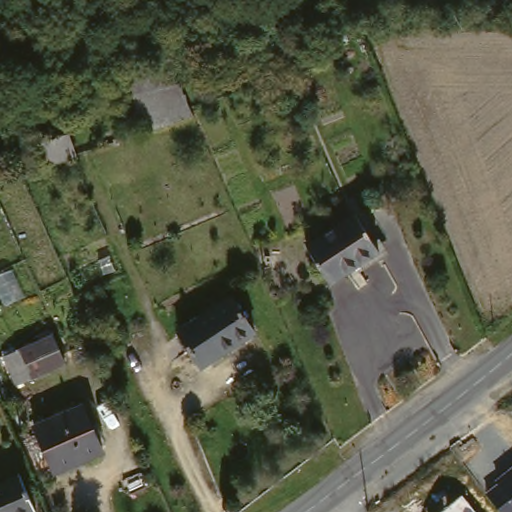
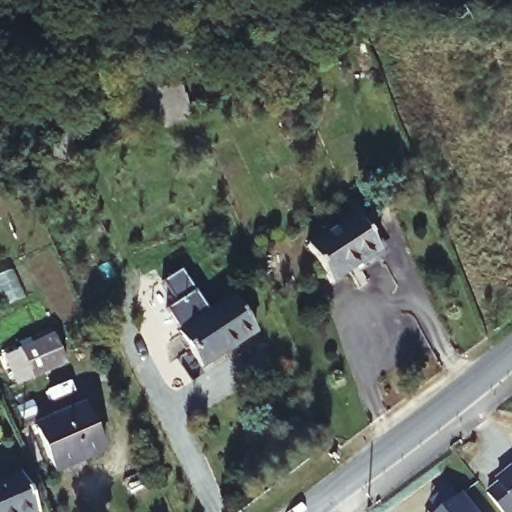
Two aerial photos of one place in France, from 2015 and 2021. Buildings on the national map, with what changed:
unchanged [(171,70),(172,91),(178,90),(192,124),(140,141),(126,76),(171,70)]
unchanged [(67,82),(76,113),(41,116),(39,106),(9,111),(5,92),(67,82)]
unchanged [(65,132),(74,156),(46,165),(37,139),(65,132)]
unchanged [(380,249),(330,279),(304,239),(355,208),(380,249)]
new [(167,309),(176,304),(162,282),(182,270),(196,291),(207,310),(179,328),(167,309)]
unchanged [(252,331),(200,363),(179,328),(231,295),(252,331)]
unchanged [(62,360),(17,377),(5,349),(51,333),(62,360)]
unchanged [(102,448),(52,466),(31,419),(85,401),(102,448)]
unchanged [(498,484),(496,480),(512,467),(512,512),(501,512),(486,493),(498,484)]
unchanged [(21,474),(39,511),(37,512),(0,512),(0,481),(21,474)]
unchanged [(463,494),(476,512),(440,512),(463,494)]

